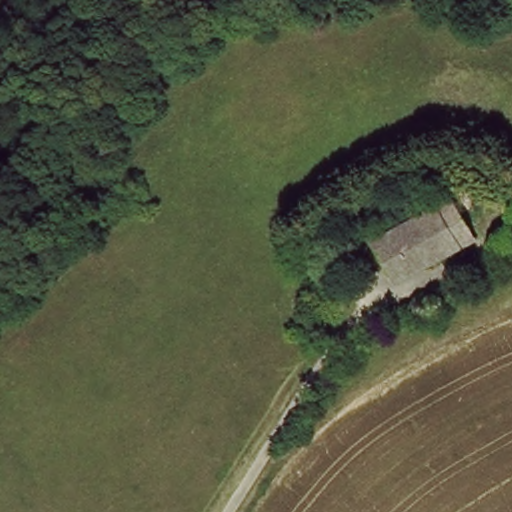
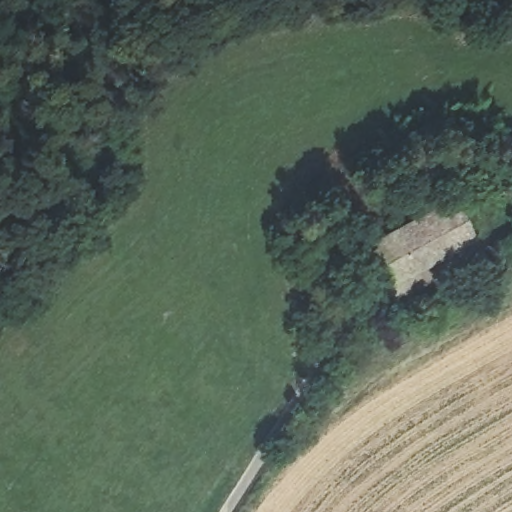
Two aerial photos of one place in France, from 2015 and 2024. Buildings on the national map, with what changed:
unchanged [(428,216),(455,200),(474,234),(442,256),(436,242),(392,271),(378,247),(428,216)]

